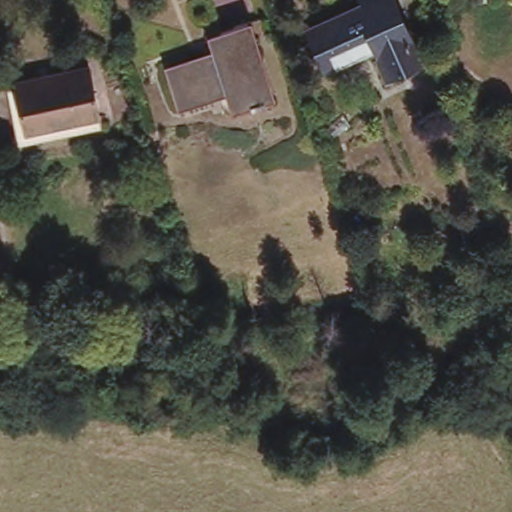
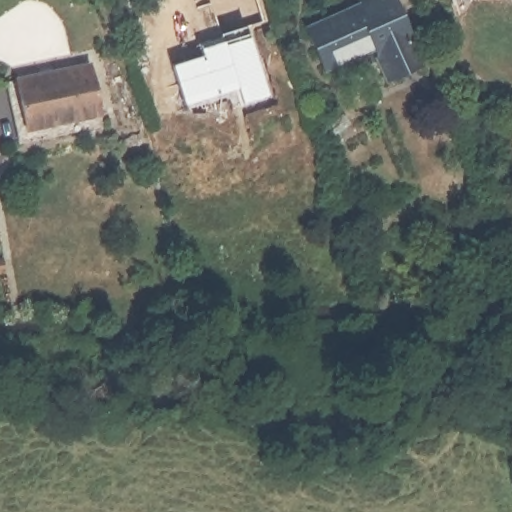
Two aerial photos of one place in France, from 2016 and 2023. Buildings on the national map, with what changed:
unchanged [(314,38),(366,15),(364,10),(368,8),(364,0),(395,0),(424,66),(393,80),(379,51),(329,72),(314,38)]
unchanged [(182,98),(170,62),(221,47),(216,30),(250,19),(274,94),(268,96),(269,99),(255,103),(254,100),(239,105),(233,82),(182,98)]
unchanged [(36,119),(26,71),(97,55),(109,115),(99,117),(96,107),(36,119)]
unchanged [(96,107),(99,117),(28,132),(15,72),(26,71),(36,119),(96,107)]
unchanged [(343,116),(349,124),(334,135),(328,126),(343,116)]
unchanged [(492,218),(494,225),(479,227),(483,247),(456,252),(451,227),(492,218)]

